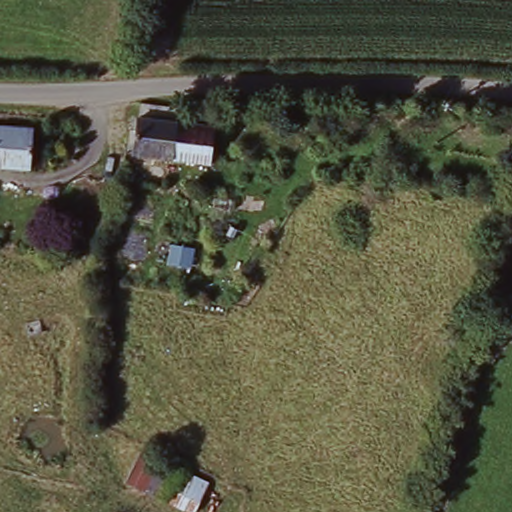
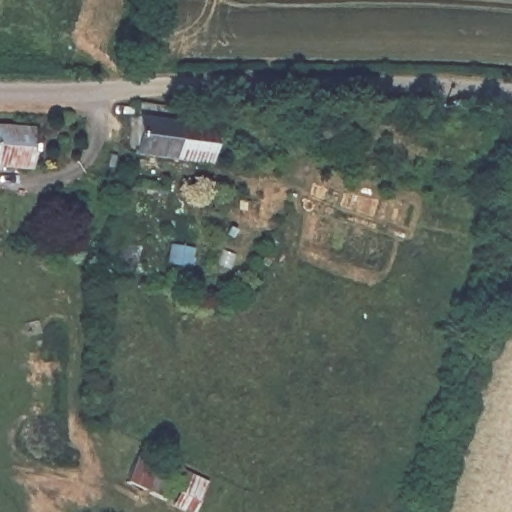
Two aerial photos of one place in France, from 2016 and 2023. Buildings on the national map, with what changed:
unchanged [(179,113),(178,128),(173,166),(126,157),(132,123),(138,124),(141,110),(149,110),(179,113)]
unchanged [(178,128),(214,133),(211,169),(173,166),(178,128)]
unchanged [(30,175),(0,171),(0,133),(33,136),(30,175)]
unchanged [(125,182),(115,209),(100,205),(109,179),(125,182)]
unchanged [(39,322),(41,333),(30,337),(27,326),(39,322)]
unchanged [(195,512),(186,512),(127,485),(141,452),(208,483),(195,512)]

